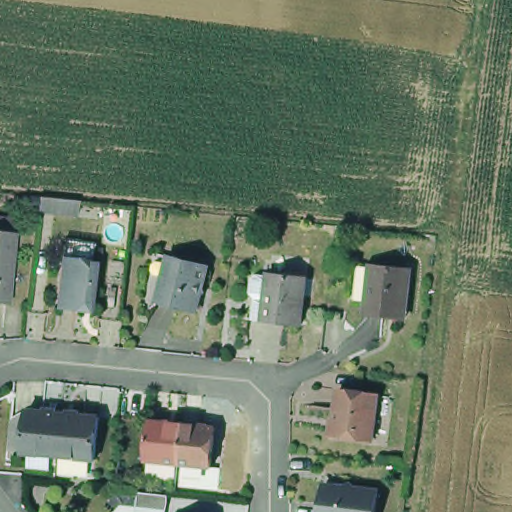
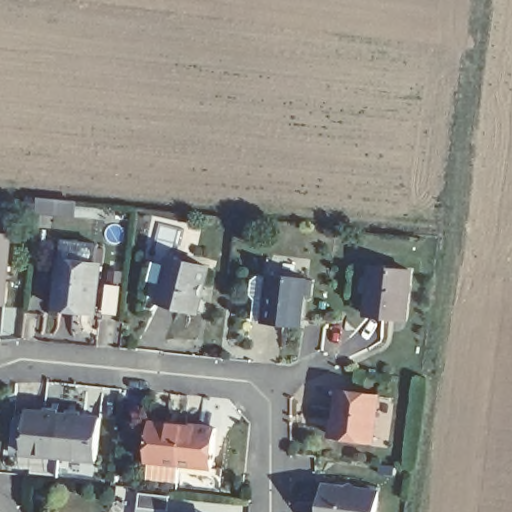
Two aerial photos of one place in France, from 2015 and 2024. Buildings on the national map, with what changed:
unchanged [(72,200),(71,213),(36,209),(37,197),(72,200)]
unchanged [(0,234),(10,234),(3,302),(0,302),(0,234)]
unchanged [(79,314),(57,312),(62,266),(64,246),(100,250),(97,270),(102,270),(97,309),(97,316),(79,314)]
unchanged [(209,312),(170,302),(166,311),(152,307),(166,255),(181,259),(220,268),(209,312)]
unchanged [(388,315),(367,312),(372,264),(411,269),(407,310),(407,316),(388,315)]
unchanged [(269,301),(267,300),(270,275),(306,280),(300,325),(267,321),(269,301)]
unchanged [(336,438),(342,393),(381,399),(375,444),(336,438)]
unchanged [(102,459),(29,451),(16,450),(19,419),(34,410),(106,418),(102,459)]
unchanged [(145,465),(150,426),(214,433),(210,471),(145,465)]
unchanged [(329,482),(382,490),(378,512),(324,512),(326,503),(329,482)]

